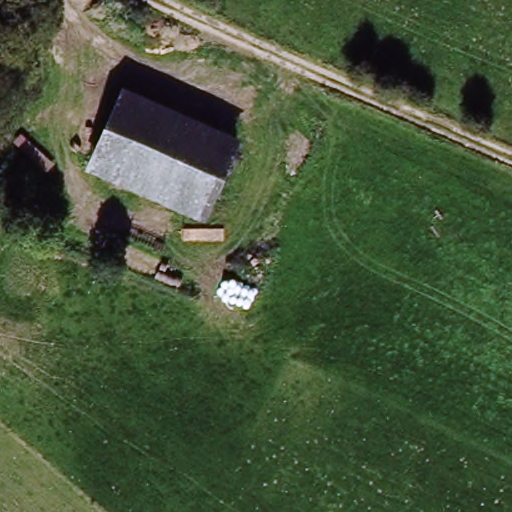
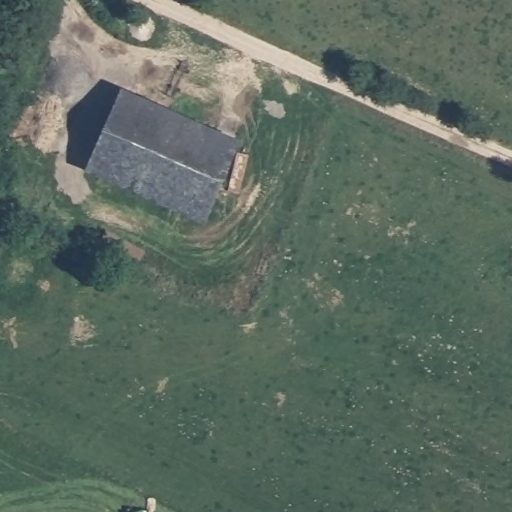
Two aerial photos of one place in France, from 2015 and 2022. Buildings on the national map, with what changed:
unchanged [(234,137),(192,230),(82,180),(125,87),(234,137)]

